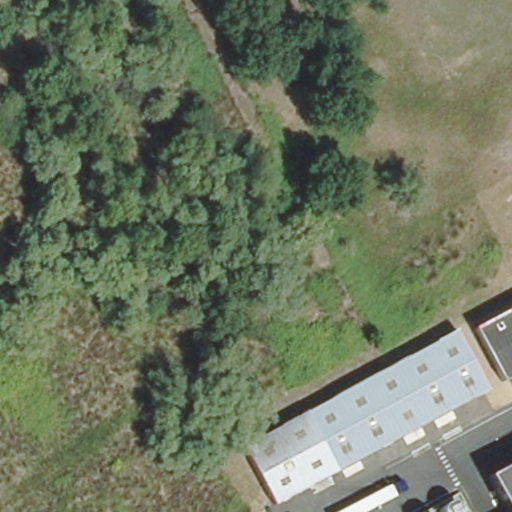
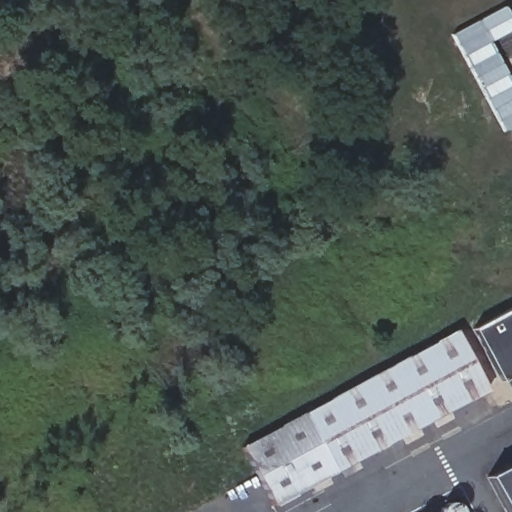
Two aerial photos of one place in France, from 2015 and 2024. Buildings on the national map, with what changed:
new [(512,19),(512,31),(491,42),(512,82),(512,128),(504,131),(453,35),(506,6),(512,19)]
unchanged [(504,381),(479,331),(512,314),(512,377),(504,381)]
unchanged [(490,388),(314,478),(315,480),(274,502),(244,443),(286,422),(303,414),(461,329),(490,388)]
unchanged [(483,478),(512,463),(512,512),(501,512),(483,478)]

